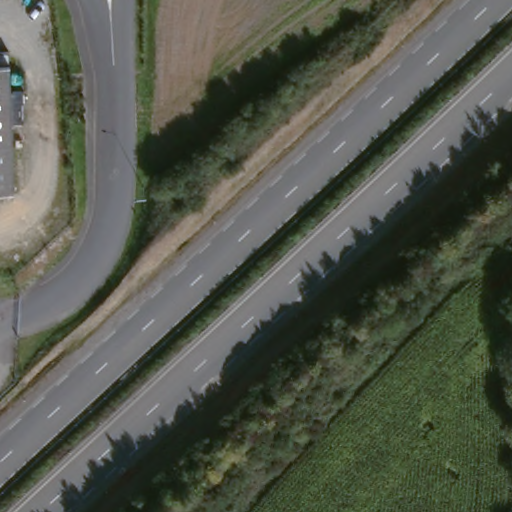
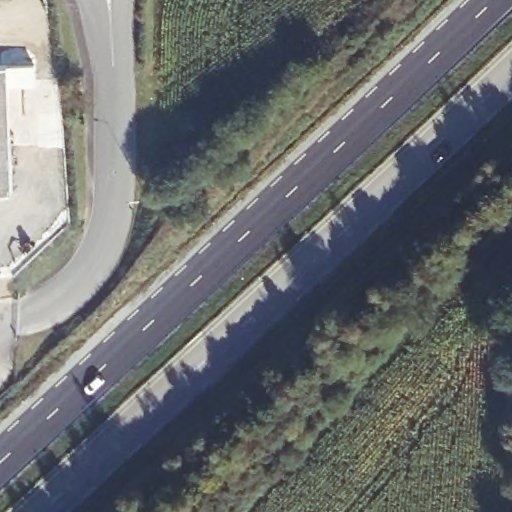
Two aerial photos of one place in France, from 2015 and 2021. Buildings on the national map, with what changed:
unchanged [(10,187),(0,188),(0,64),(5,63),(10,187)]

